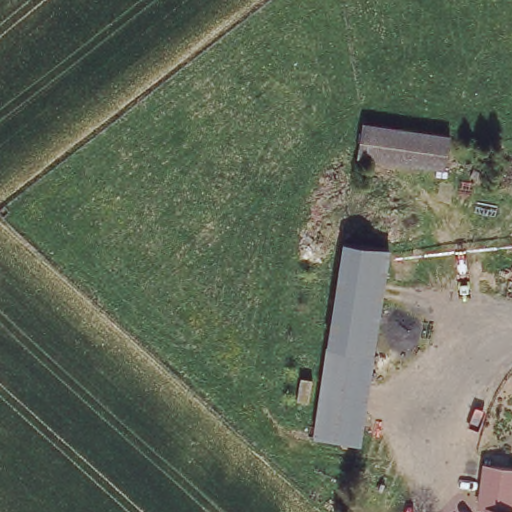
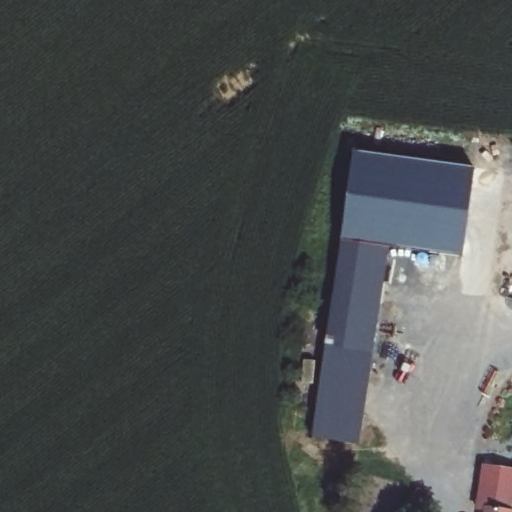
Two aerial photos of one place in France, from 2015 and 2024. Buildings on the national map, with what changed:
demolished [(444,168),(358,157),(363,122),(449,134),(444,168)]
new [(475,168),(464,258),(388,246),(388,242),(344,236),(354,152),(475,168)]
unchanged [(388,242),(372,346),(328,339),(344,236),(388,242)]
unchanged [(363,400),(319,395),(328,339),(372,346),(363,400)]
unchanged [(314,430),(319,395),(363,400),(361,417),(358,436),(346,435),(314,430)]
unchanged [(484,470),(512,473),(512,512),(502,512),(488,510),(478,509),(484,470)]
unchanged [(502,512),(487,512),(488,510),(502,512)]

